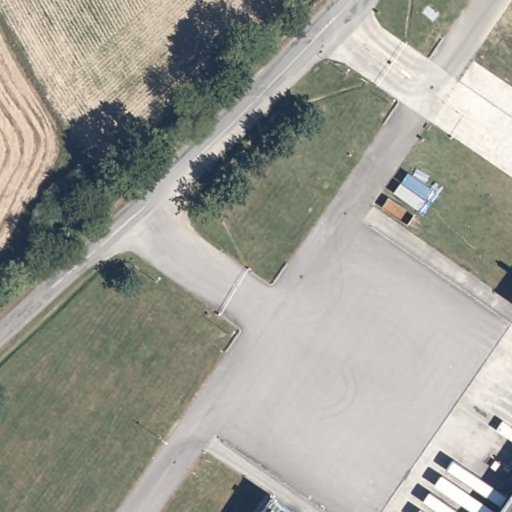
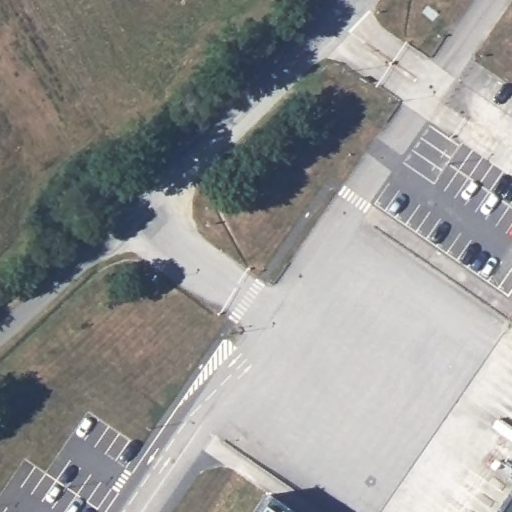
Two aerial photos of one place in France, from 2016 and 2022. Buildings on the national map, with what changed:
unchanged [(304,512),(255,512),(271,489),(304,512)]
unchanged [(499,512),(512,493),(512,512),(499,512)]

